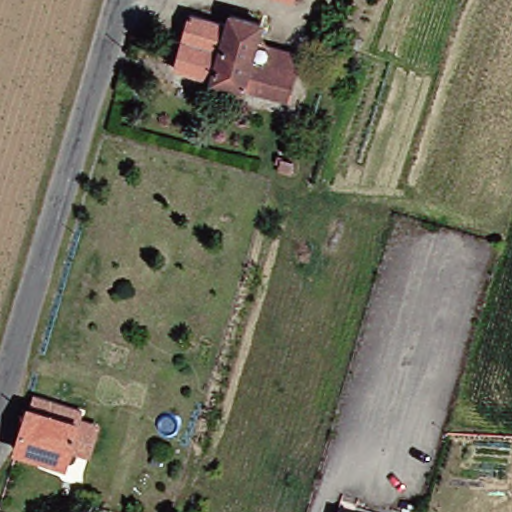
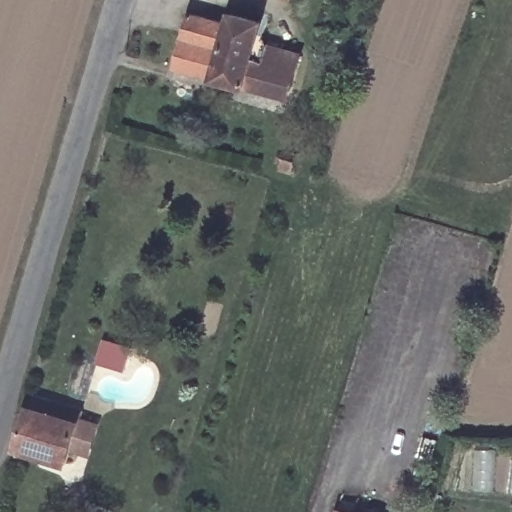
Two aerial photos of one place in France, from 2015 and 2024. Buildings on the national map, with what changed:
unchanged [(182,69),(196,17),(228,26),(230,19),(266,29),(262,45),(306,57),(294,99),(182,69)]
unchanged [(282,159),(281,163),(288,166),(285,175),(276,173),(277,167),(272,165),(274,156),(282,159)]
unchanged [(86,405),(84,416),(86,416),(70,467),(21,452),(37,401),(76,413),(80,403),(86,405)]
unchanged [(340,512),(342,505),(354,508),(365,512),(340,512)]

